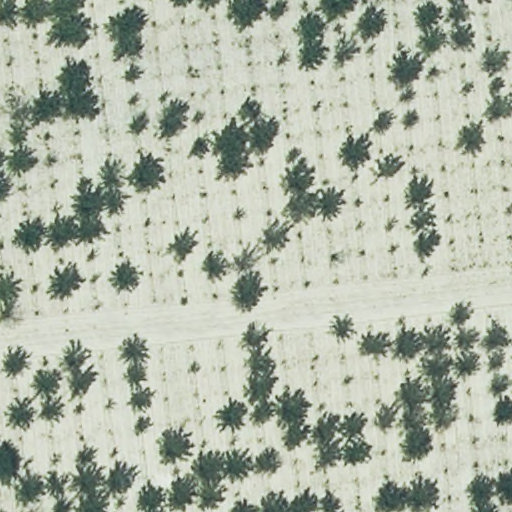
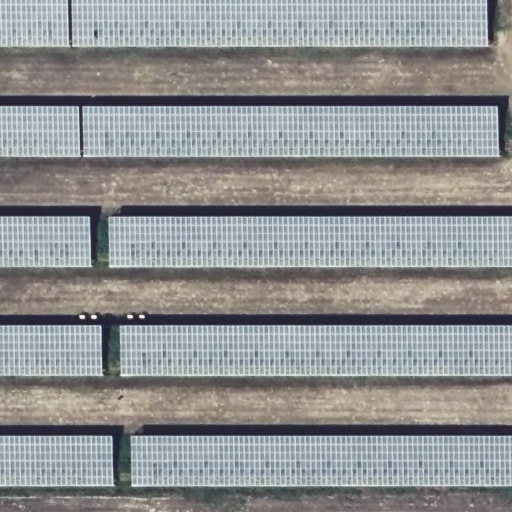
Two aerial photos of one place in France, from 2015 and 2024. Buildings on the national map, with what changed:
new [(489,45),(0,45),(0,0),(489,0),(489,45)]
new [(0,155),(0,106),(499,105),(499,155),(0,155)]
new [(0,265),(0,215),(92,215),(93,265),(0,265)]
new [(111,266),(110,215),(512,215),(512,266),(111,266)]
new [(0,374),(0,325),(103,324),(103,374),(0,374)]
new [(121,374),(121,324),(512,324),(512,373),(121,374)]
new [(0,484),(0,435),(114,434),(114,483),(0,484)]
new [(133,484),(133,435),(512,435),(512,484),(133,484)]

